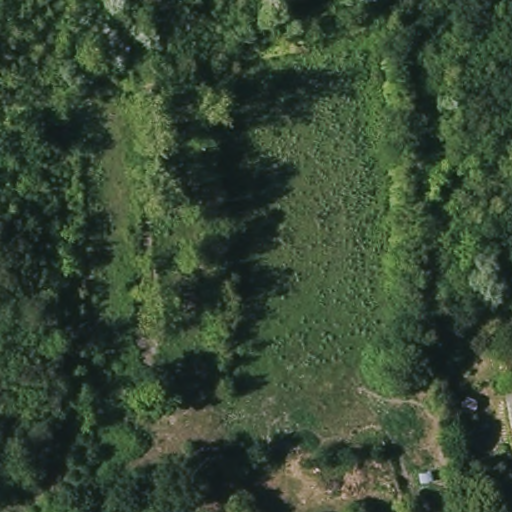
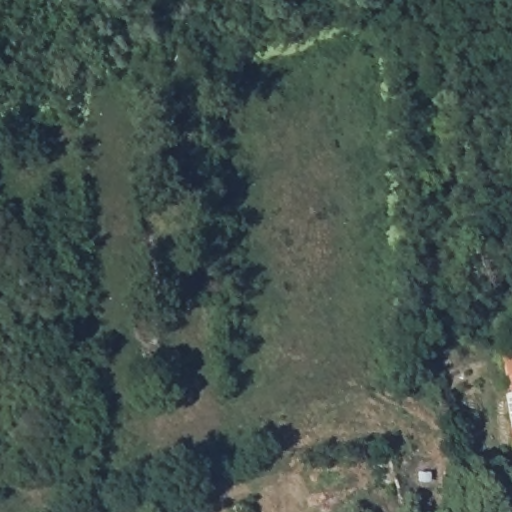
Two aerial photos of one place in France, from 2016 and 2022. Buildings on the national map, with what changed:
unchanged [(509,383),(512,382),(512,392),(509,383)]
unchanged [(236,512),(223,512),(232,507),(236,512)]

